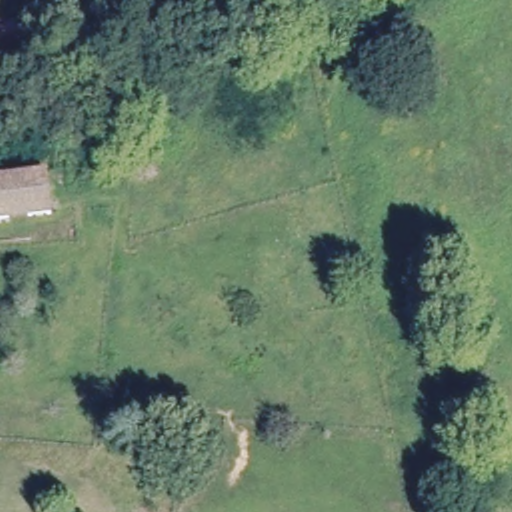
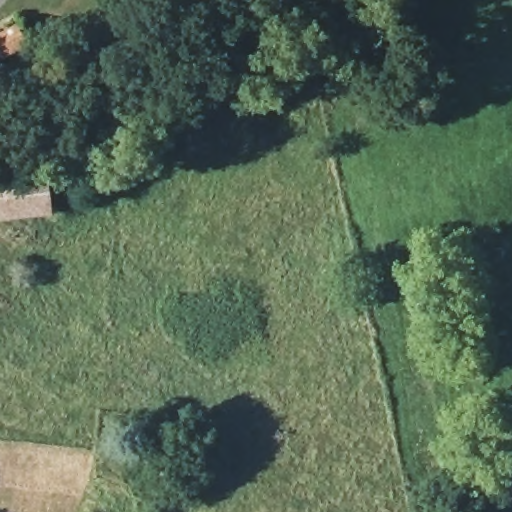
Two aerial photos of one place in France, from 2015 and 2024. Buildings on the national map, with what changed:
unchanged [(0,59),(0,36),(17,26),(27,44),(0,59)]
unchanged [(0,214),(0,173),(47,167),(52,208),(0,214)]

